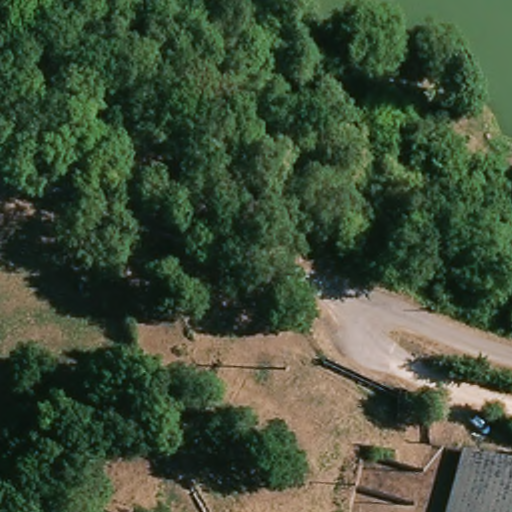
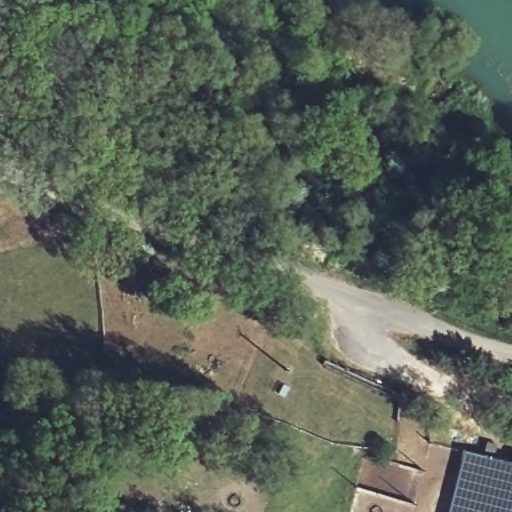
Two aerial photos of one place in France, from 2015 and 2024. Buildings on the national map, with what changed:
unchanged [(449,512),(464,450),(512,463),(512,512),(449,512)]

